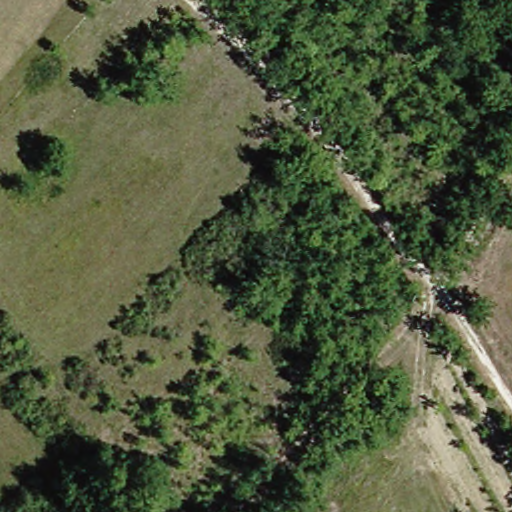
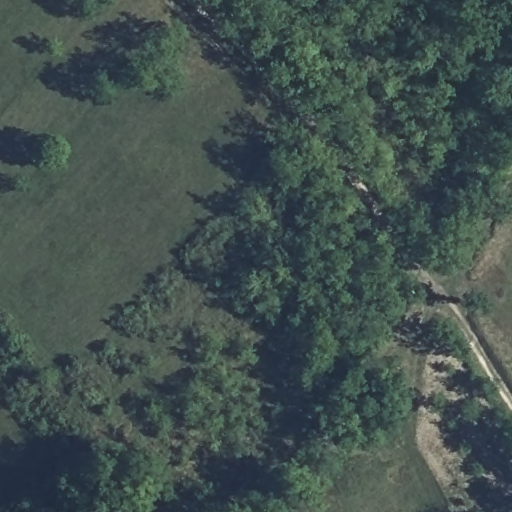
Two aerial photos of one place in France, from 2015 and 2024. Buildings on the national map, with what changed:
[]

